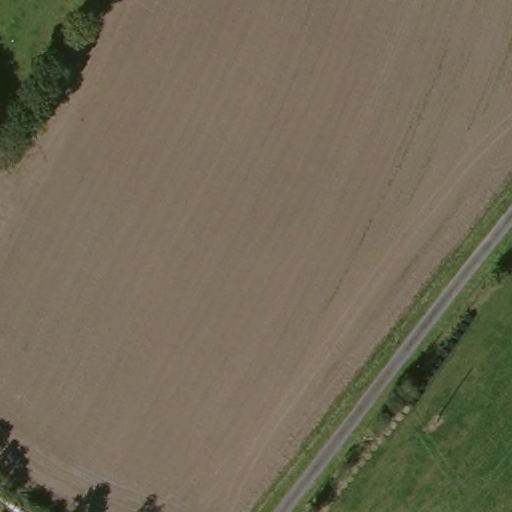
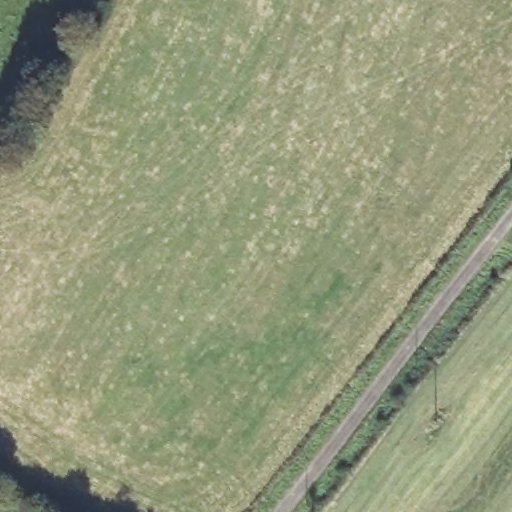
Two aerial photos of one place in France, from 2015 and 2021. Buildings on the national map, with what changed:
[]

